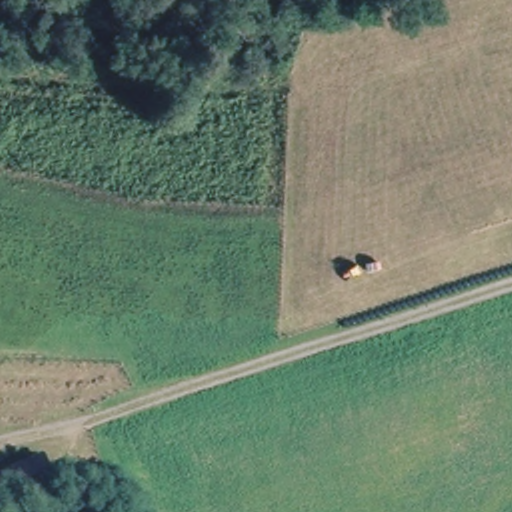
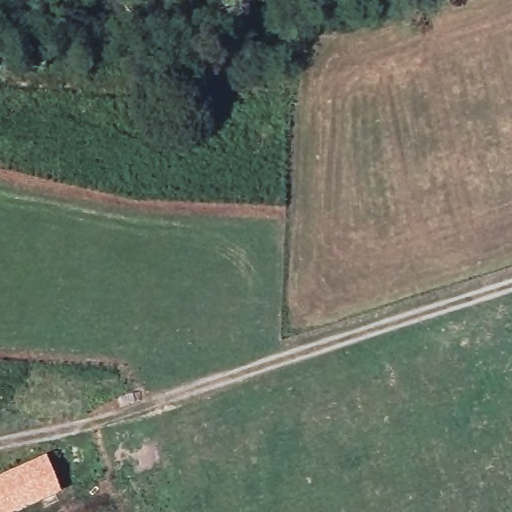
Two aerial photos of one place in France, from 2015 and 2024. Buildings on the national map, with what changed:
new [(47,455),(62,492),(15,512),(0,512),(0,475),(47,455)]
demolished [(16,478),(51,463),(63,492),(27,508),(16,478)]
demolished [(27,508),(19,512),(0,512),(0,485),(16,478),(27,508)]

